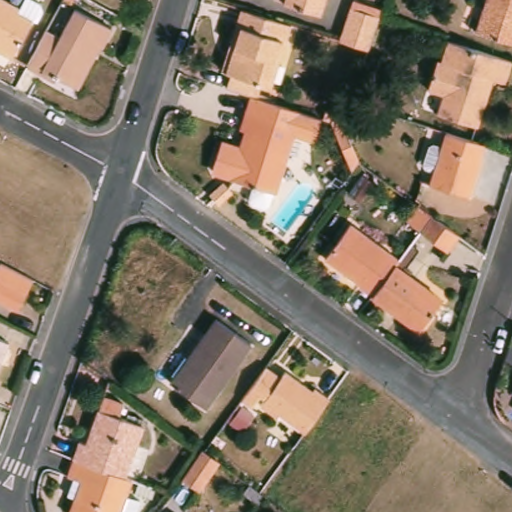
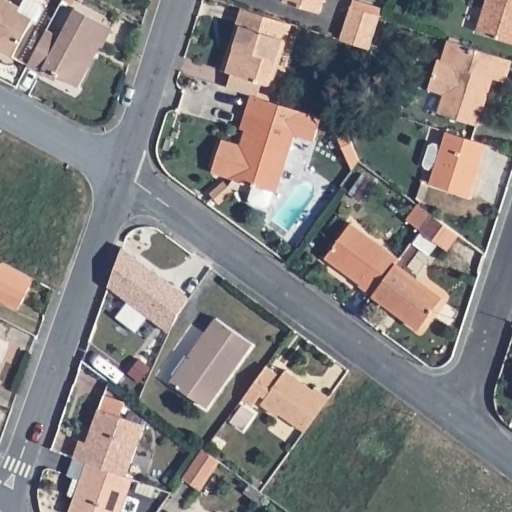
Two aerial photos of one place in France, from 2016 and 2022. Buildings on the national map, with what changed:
unchanged [(278,0),(328,0),(322,16),(286,4),(277,1),(278,0)]
unchanged [(484,0),(512,0),(512,46),(474,32),(484,0)]
unchanged [(19,12),(25,1),(40,9),(41,16),(35,27),(32,25),(10,63),(0,58),(0,2),(19,12)]
unchanged [(39,75),(27,67),(46,32),(58,38),(73,9),(111,30),(100,50),(96,47),(74,88),(55,77),(53,82),(39,75)]
unchanged [(223,73),(219,72),(227,47),(234,26),(239,10),(244,12),(289,26),(284,43),(270,88),(265,87),(223,73)]
unchanged [(350,11),(378,21),(368,52),(339,42),(350,11)]
unchanged [(492,80),(489,88),(493,89),(479,127),(440,114),(446,95),(430,90),(439,63),(442,64),(449,43),(512,63),(512,76),(509,85),(492,80)]
unchanged [(290,134),(270,192),(268,191),(264,204),(260,207),(247,203),(245,198),(249,185),(242,183),(230,179),(240,147),(238,146),(241,133),(238,132),(249,97),(254,99),(255,94),(267,98),(266,102),(294,111),(318,119),(311,141),(290,134)]
unchanged [(346,172),(328,122),(322,120),(325,112),(332,114),(345,118),(342,126),(355,160),(346,172)]
unchanged [(471,198),(433,185),(451,132),(489,145),(471,198)]
unchanged [(416,230),(403,220),(415,204),(428,214),(457,236),(445,251),(416,230)]
unchanged [(358,289),(361,286),(327,261),(352,228),(401,263),(396,270),(373,301),(358,289)]
new [(122,247),(189,300),(177,316),(169,334),(108,286),(122,247)]
unchanged [(17,313),(0,304),(0,267),(6,270),(32,284),(17,313)]
unchanged [(442,305),(419,335),(373,301),(396,270),(442,305)]
unchanged [(252,346),(205,410),(170,385),(218,321),(252,346)]
unchanged [(8,345),(0,366),(0,342),(8,345)]
unchanged [(273,417),(257,405),(261,400),(256,396),(247,408),(238,400),(241,396),(246,389),(262,368),(277,378),(282,371),(309,391),(311,388),(325,399),(300,433),(275,414),(273,417)]
unchanged [(107,398),(127,405),(123,417),(146,425),(128,478),(135,480),(124,512),(74,512),(78,502),(70,499),(84,461),(76,459),(82,442),(91,445),(107,398)]
unchanged [(198,491),(181,478),(201,450),(204,452),(219,463),(198,491)]
unchanged [(243,494),(250,485),(261,493),(265,496),(265,497),(259,506),(243,494)]

